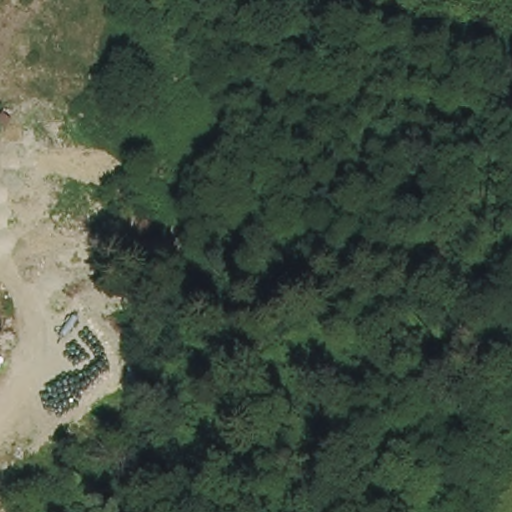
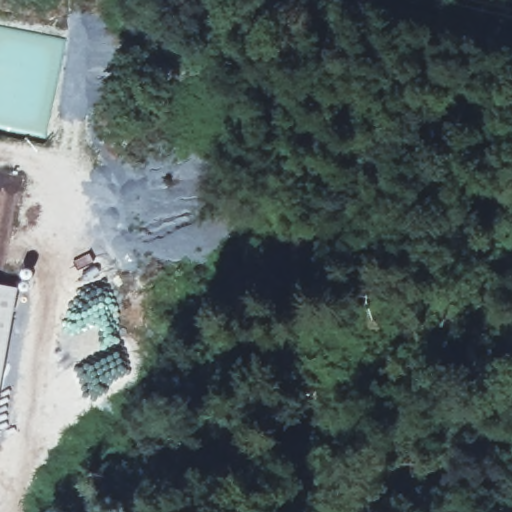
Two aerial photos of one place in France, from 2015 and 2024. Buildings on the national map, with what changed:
new [(21,268),(28,267),(30,270),(33,274),(33,279),(29,291),(28,293),(25,293),(16,294),(0,384),(0,284),(19,287),(21,268)]

